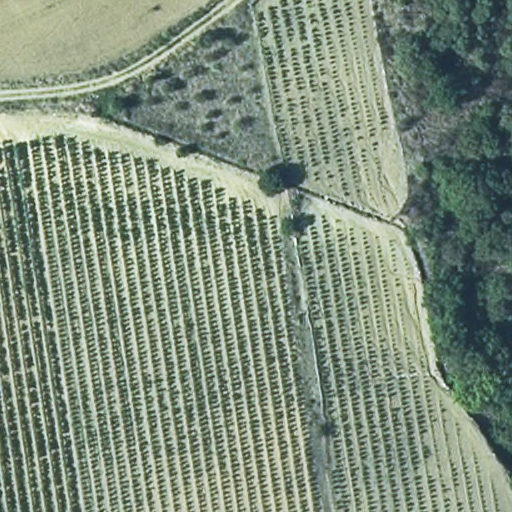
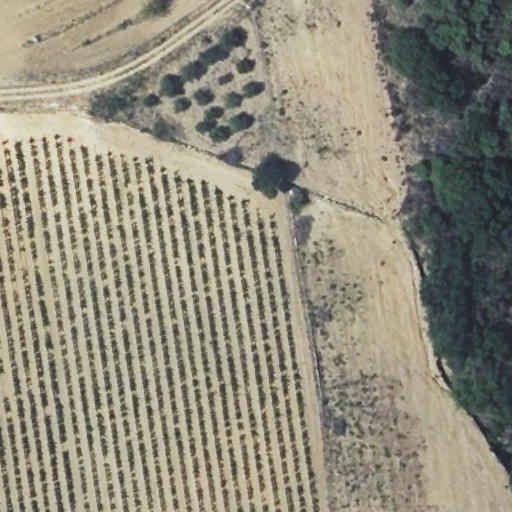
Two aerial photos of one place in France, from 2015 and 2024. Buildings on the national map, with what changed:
[]

